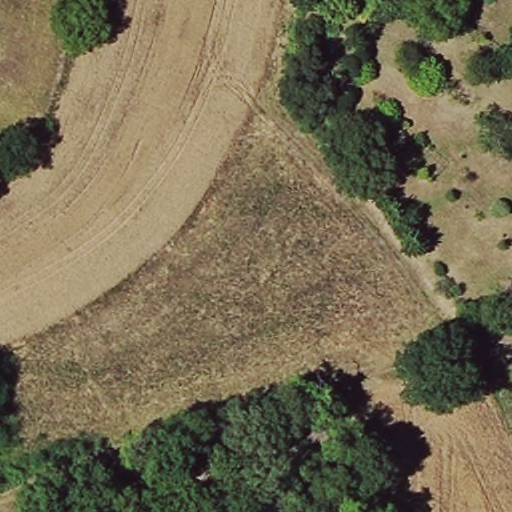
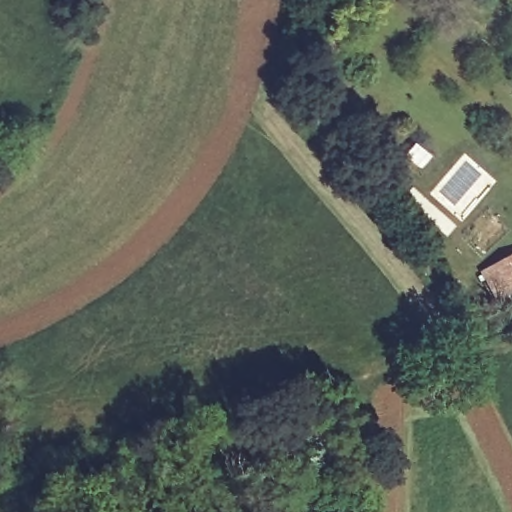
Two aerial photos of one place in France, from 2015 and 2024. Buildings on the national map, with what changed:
new [(512,254),(512,291),(493,301),(478,272),(512,254)]

